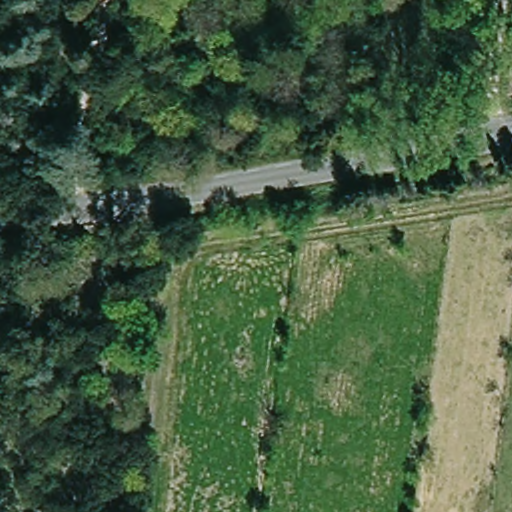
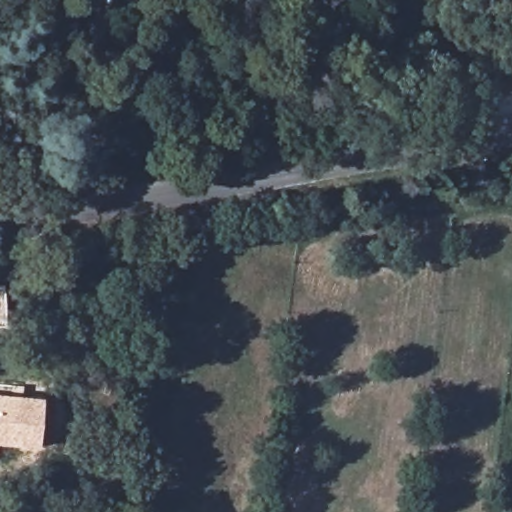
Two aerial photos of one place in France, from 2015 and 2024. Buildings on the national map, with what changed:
new [(0,326),(0,285),(3,285),(5,325),(0,326)]
new [(43,397),(38,447),(0,445),(0,394),(43,397)]

